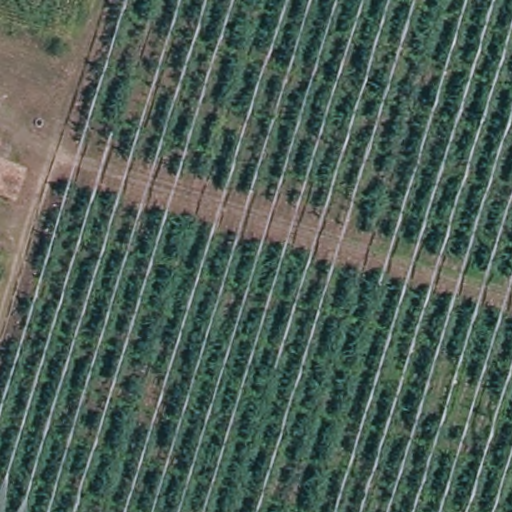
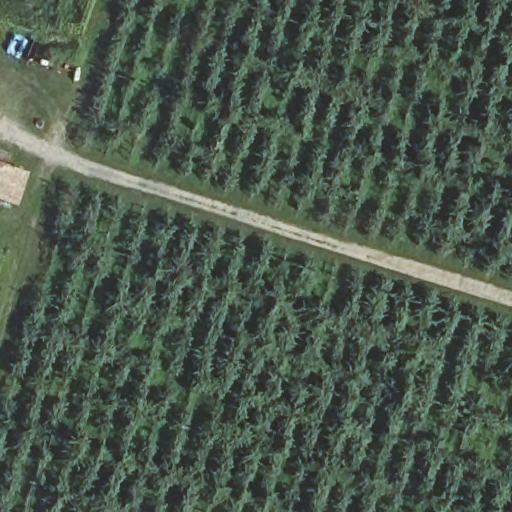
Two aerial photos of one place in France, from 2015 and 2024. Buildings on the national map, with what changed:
unchanged [(0,164),(31,174),(20,204),(0,197),(0,164)]

